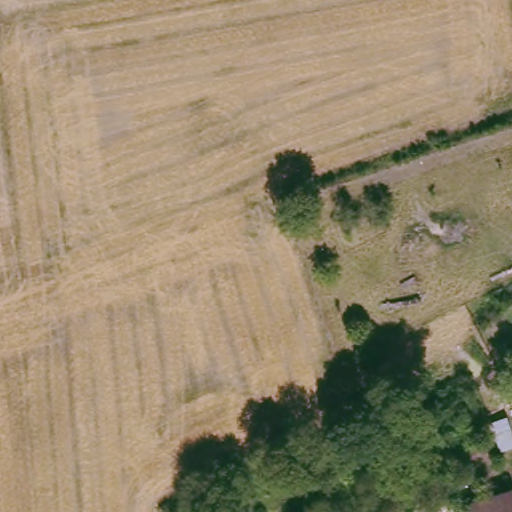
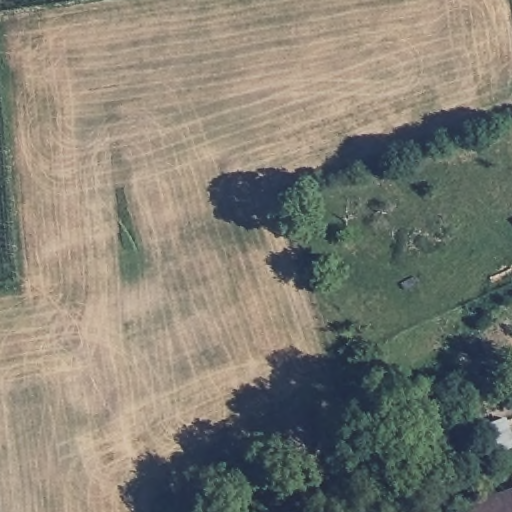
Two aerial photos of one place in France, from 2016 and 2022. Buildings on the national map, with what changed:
unchanged [(512,479),(504,458),(512,455),(512,479)]
unchanged [(512,498),(512,512),(466,512),(463,504),(509,490),(512,498)]

